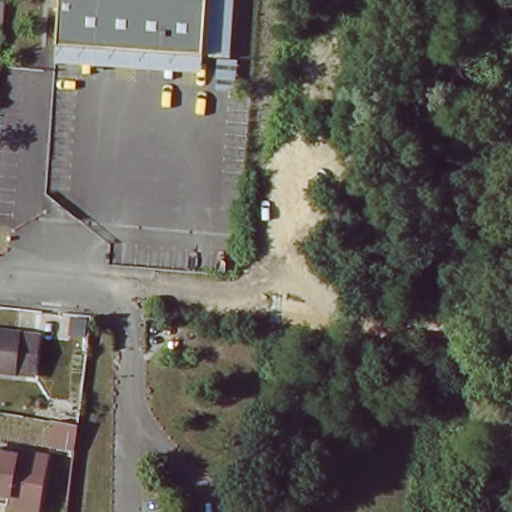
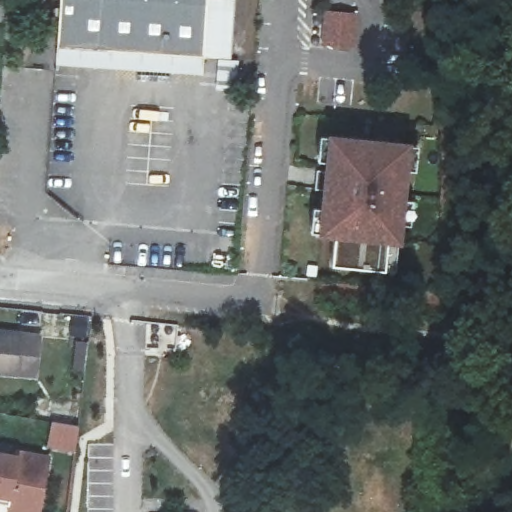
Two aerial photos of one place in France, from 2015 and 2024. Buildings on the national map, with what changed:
unchanged [(203,64),(59,52),(63,0),(208,0),(203,64)]
unchanged [(233,67),(203,64),(208,0),(239,0),(233,67)]
new [(320,10),(350,13),(347,48),(330,47),(317,45),(320,10)]
unchanged [(203,64),(202,79),(58,67),(59,52),(203,64)]
new [(322,134),(404,141),(395,243),(380,241),(378,269),(326,264),(328,237),(313,236),(322,134)]
unchanged [(42,334),(39,375),(0,372),(0,330),(42,334)]
unchanged [(17,462),(17,459),(18,457),(49,461),(48,465),(42,512),(10,512),(10,511),(0,510),(0,460),(17,462)]

